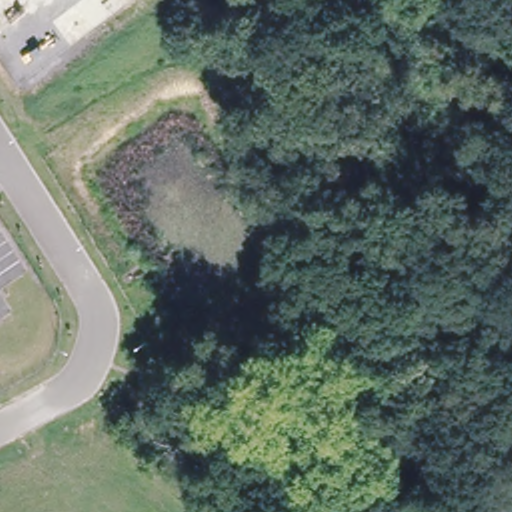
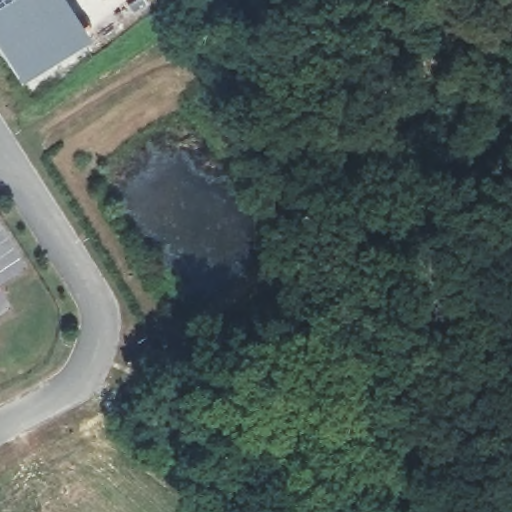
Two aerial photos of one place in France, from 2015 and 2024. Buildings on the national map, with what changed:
new [(21,82),(0,50),(0,0),(66,0),(90,37),(21,82)]

